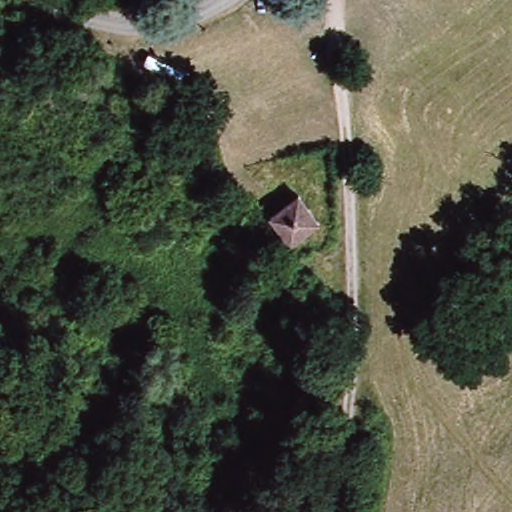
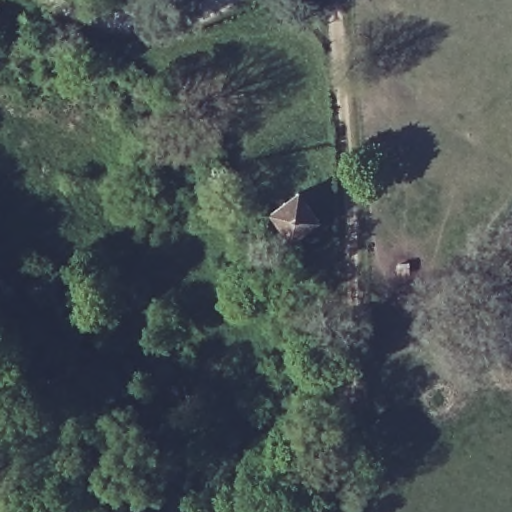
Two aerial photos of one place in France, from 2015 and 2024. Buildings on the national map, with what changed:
unchanged [(319,218),(290,241),(267,213),(298,191),(319,218)]

